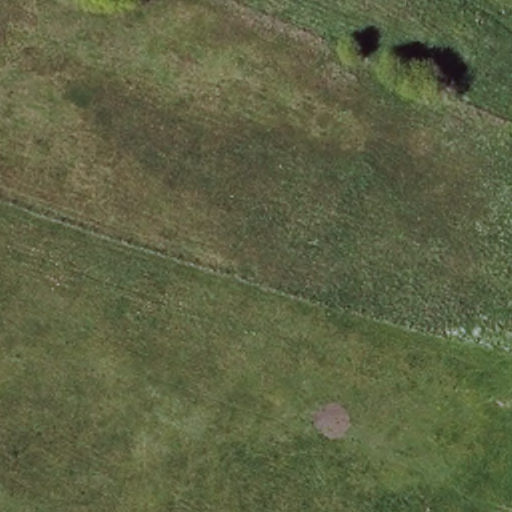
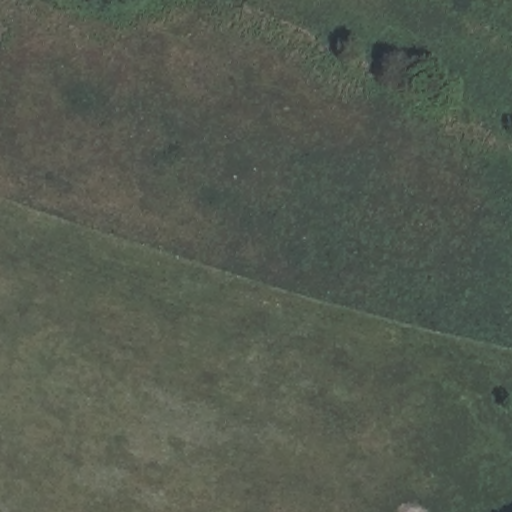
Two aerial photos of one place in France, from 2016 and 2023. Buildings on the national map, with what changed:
[]

